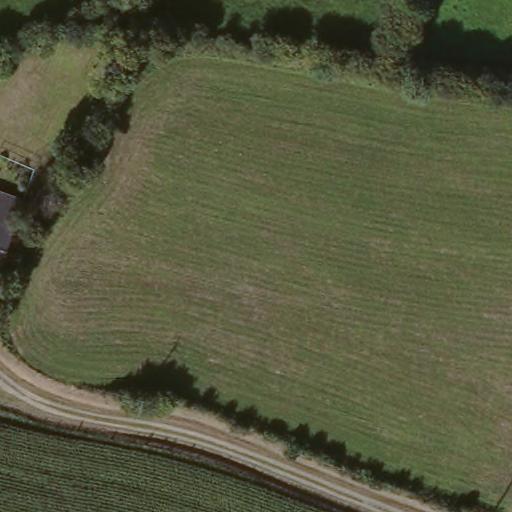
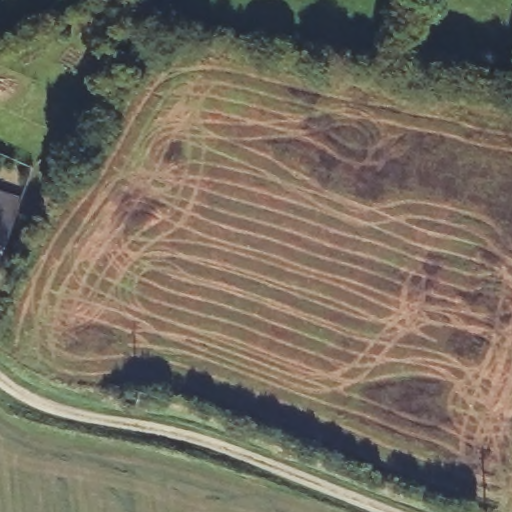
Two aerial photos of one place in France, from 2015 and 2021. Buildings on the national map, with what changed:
unchanged [(0,255),(0,201),(16,207),(0,255)]

